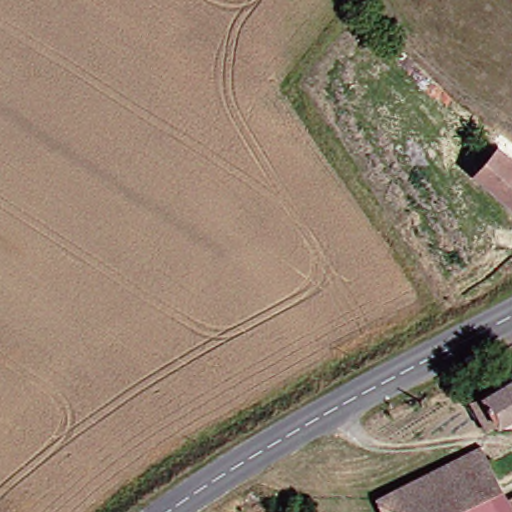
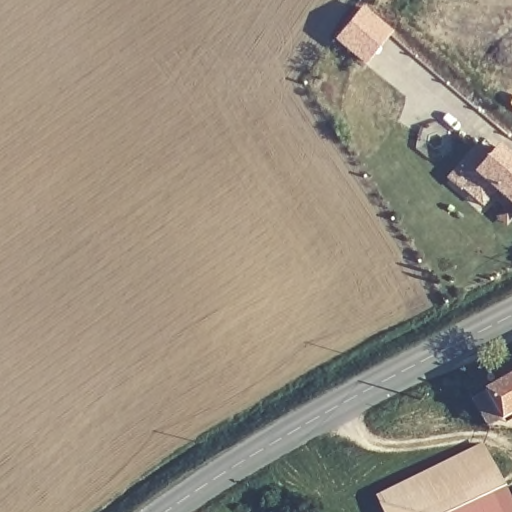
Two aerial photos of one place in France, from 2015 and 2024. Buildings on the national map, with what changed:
new [(334,40),(362,6),(393,32),(365,66),(334,40)]
unchanged [(478,178),(503,151),(512,159),(512,206),(478,178)]
unchanged [(504,417),(489,389),(512,376),(512,418),(504,417)]
unchanged [(512,507),(512,512),(385,512),(380,499),(480,449),(487,460),(512,447),(512,467),(497,476),(512,507)]
unchanged [(497,476),(512,467),(512,507),(497,476)]

